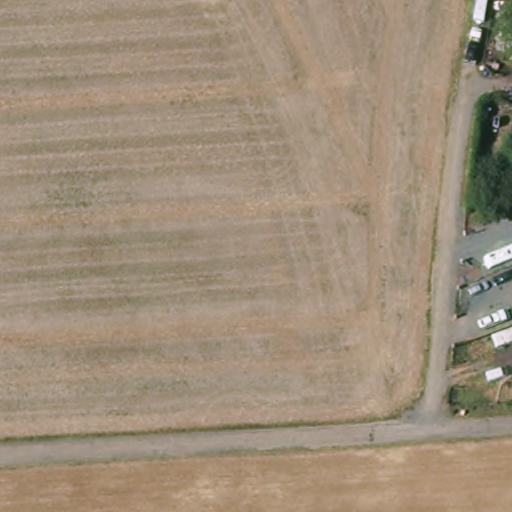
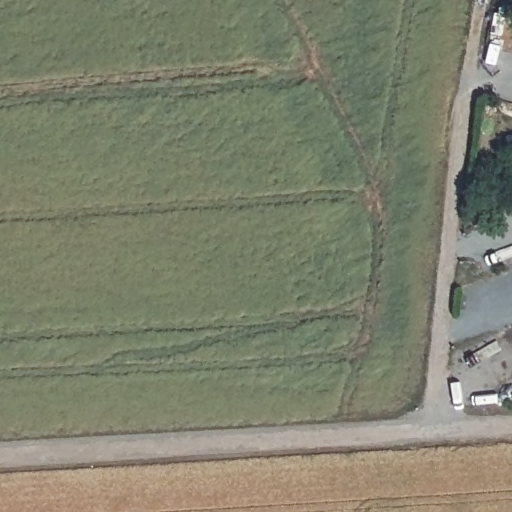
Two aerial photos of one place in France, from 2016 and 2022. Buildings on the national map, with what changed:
[]

